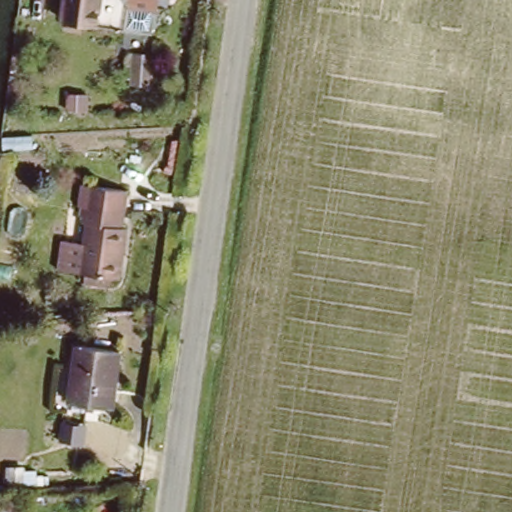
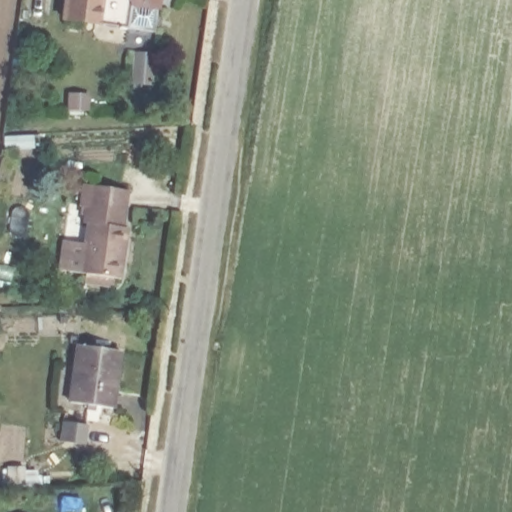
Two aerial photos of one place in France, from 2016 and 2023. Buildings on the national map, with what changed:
unchanged [(57,16),(60,0),(124,0),(124,1),(120,26),(95,22),(57,16)]
unchanged [(60,247),(78,248),(81,204),(77,203),(78,183),(123,188),(120,228),(125,229),(119,279),(57,273),(60,247)]
unchanged [(115,353),(106,412),(65,407),(72,348),(115,353)]

